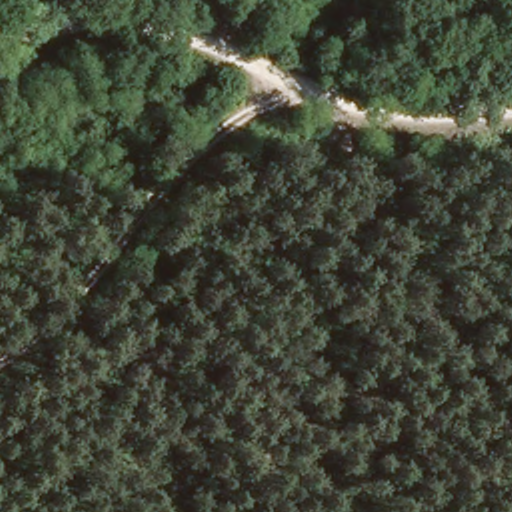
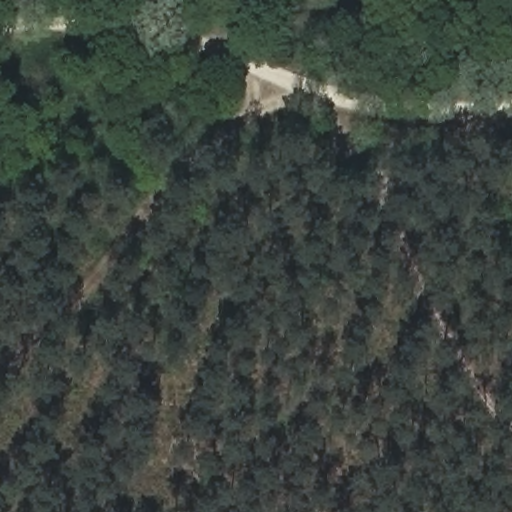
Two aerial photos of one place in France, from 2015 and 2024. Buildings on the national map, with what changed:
[]

